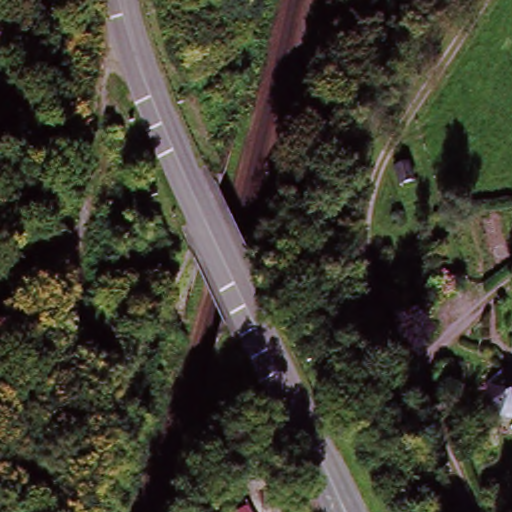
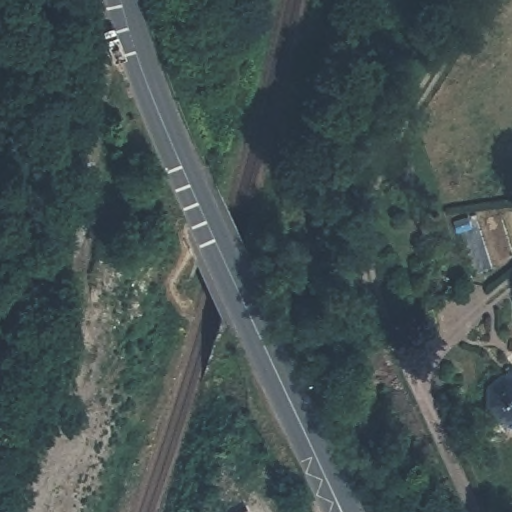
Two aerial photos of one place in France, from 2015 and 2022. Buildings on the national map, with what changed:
unchanged [(500,422),(487,408),(489,392),(512,376),(512,424),(500,422)]
unchanged [(253,505),(257,512),(240,512),(247,508),(253,505)]

